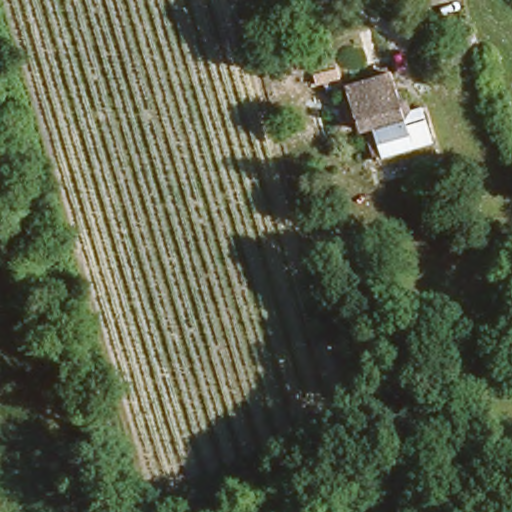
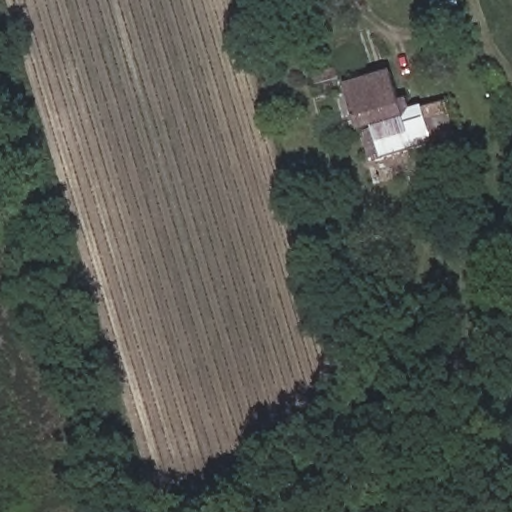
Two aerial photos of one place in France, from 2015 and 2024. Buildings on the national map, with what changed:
unchanged [(364,147),(375,145),(368,123),(352,129),(342,90),(390,74),(401,106),(419,101),(431,137),(369,153),(364,147)]

